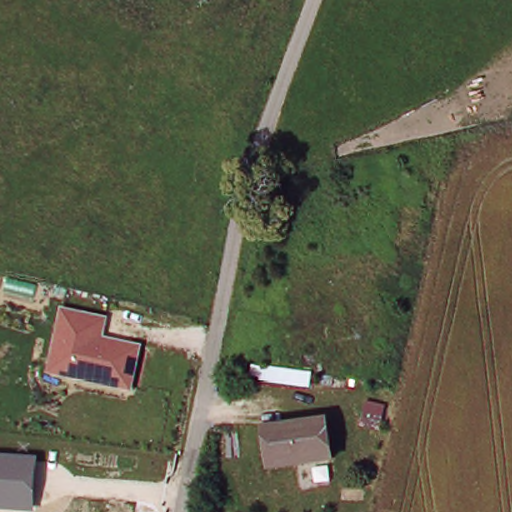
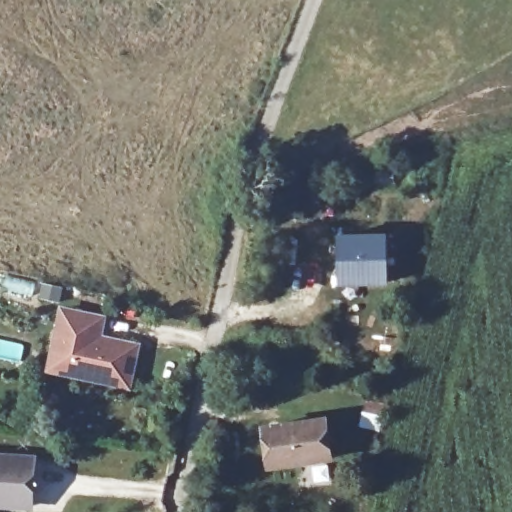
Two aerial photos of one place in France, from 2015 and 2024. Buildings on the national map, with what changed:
new [(337,235),(383,234),(385,280),(340,282),(337,235)]
unchanged [(107,316),(102,335),(142,343),(131,391),(45,374),(60,306),(107,316)]
unchanged [(264,424),(327,417),(340,479),(312,483),(309,464),(269,471),(264,424)]
unchanged [(32,510),(0,508),(0,454),(36,456),(32,510)]

